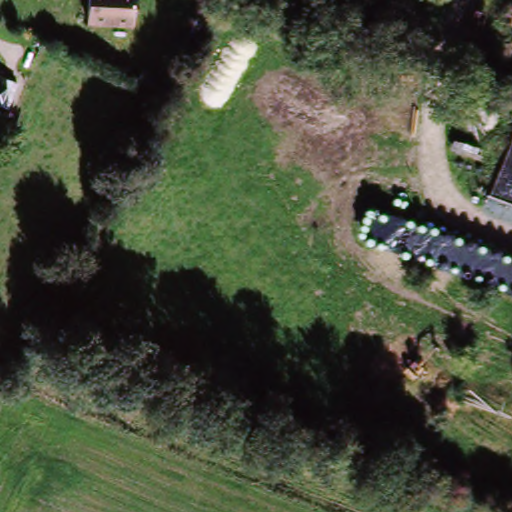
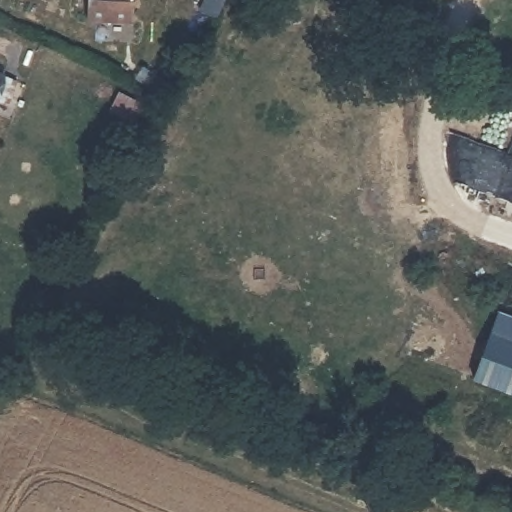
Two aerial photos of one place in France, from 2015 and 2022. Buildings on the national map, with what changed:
unchanged [(90,25),(90,0),(135,0),(135,26),(90,25)]
unchanged [(0,109),(0,81),(20,88),(11,113),(0,109)]
new [(472,383),(498,314),(512,319),(512,398),(472,383)]

